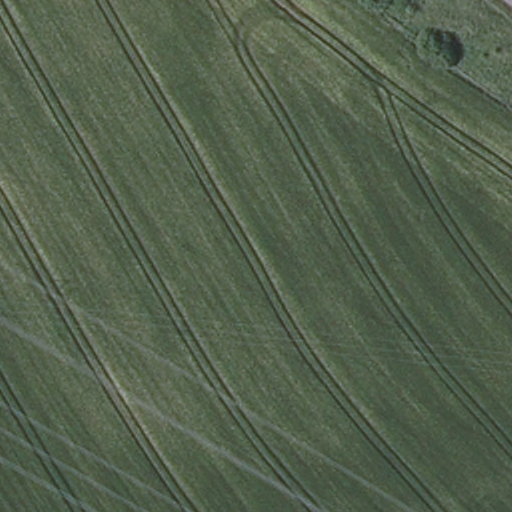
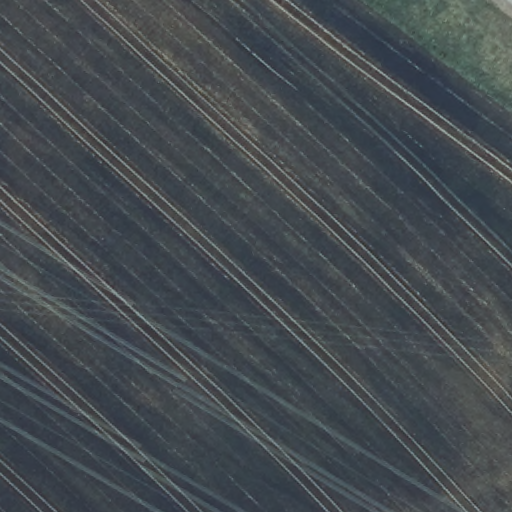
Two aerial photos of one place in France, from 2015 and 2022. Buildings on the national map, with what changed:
[]

